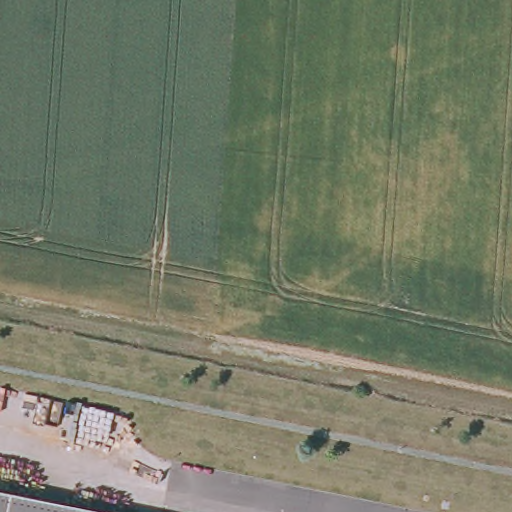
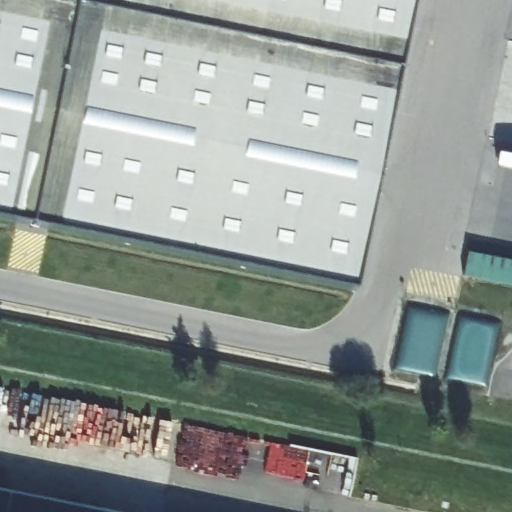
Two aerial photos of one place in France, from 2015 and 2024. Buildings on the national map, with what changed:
new [(0,214),(0,0),(412,0),(356,287),(0,214)]
new [(464,276),(468,253),(512,261),(512,285),(464,276)]
unchanged [(105,512),(0,512),(0,490),(105,512)]

